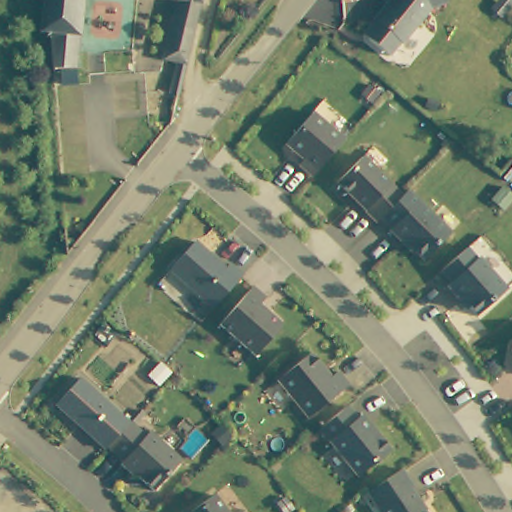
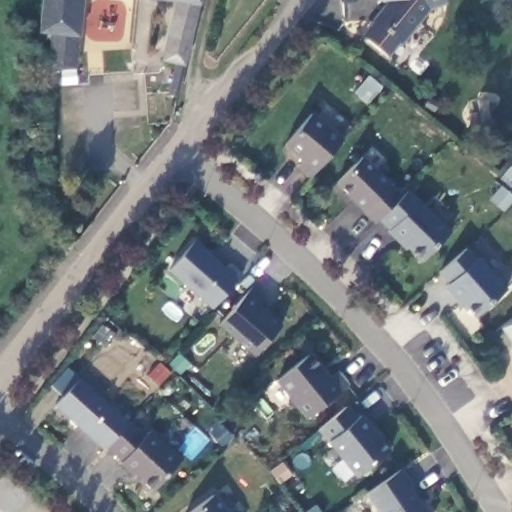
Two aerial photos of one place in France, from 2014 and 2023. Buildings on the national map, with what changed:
unchanged [(82,48),(84,67),(56,69),(53,32),(52,32),(42,30),(46,0),(86,0),(82,33),(82,48)]
unchanged [(173,91),(181,61),(167,57),(181,0),(176,0),(204,0),(181,93),(173,91)]
unchanged [(444,0),(445,2),(429,8),(401,44),(398,43),(387,57),(367,40),(378,26),(371,21),(385,3),(380,0),(444,0)]
unchanged [(299,164),(303,159),(286,143),(312,113),(343,140),(312,176),(299,164)]
unchanged [(381,218),(373,223),(334,183),(362,156),(403,195),(381,218)]
unchanged [(450,234),(422,262),(402,242),(401,244),(388,232),(390,230),(381,218),(407,191),(450,234)]
unchanged [(171,269),(195,241),(210,254),(207,256),(224,270),(230,264),(242,275),(214,307),(171,269)]
unchanged [(473,319),(445,288),(450,282),(439,269),(466,244),(507,289),(473,319)]
unchanged [(266,297),(260,304),(282,324),(255,356),(219,324),(253,286),(266,297)]
unchanged [(328,375),(337,369),(350,387),(310,417),(277,374),(310,350),(328,375)]
unchanged [(512,350),(512,354),(511,352),(512,350)]
unchanged [(105,449),(56,404),(80,377),(130,422),(105,449)]
unchanged [(356,480),(316,431),(346,405),(356,417),(363,412),(392,450),(356,480)]
unchanged [(153,494),(119,465),(121,463),(105,449),(130,422),(144,434),(149,429),(184,459),(153,494)]
unchanged [(413,486),(411,488),(426,510),(424,511),(425,512),(382,512),(367,492),(382,482),(402,469),(413,486)]
unchanged [(214,494),(227,512),(189,512),(214,494)]

